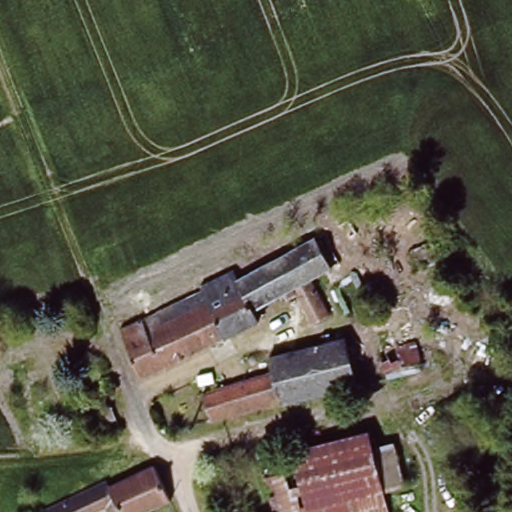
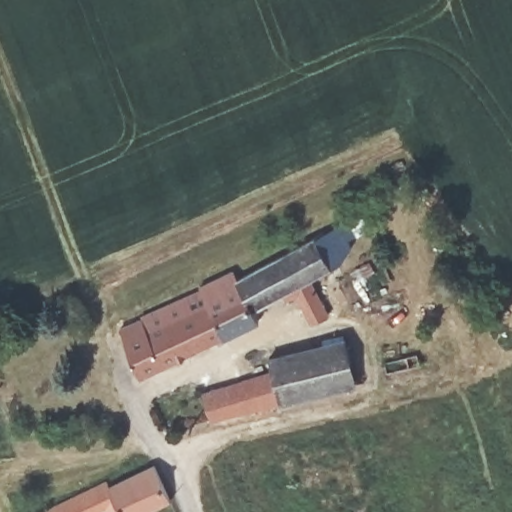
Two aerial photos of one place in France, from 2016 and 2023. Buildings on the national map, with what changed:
unchanged [(201,286),(234,272),(238,280),(317,237),(334,267),(312,280),(331,313),(314,322),(300,294),(289,300),(286,293),(256,311),(261,320),(142,379),(121,328),(203,292),(201,286)]
unchanged [(281,403),(274,372),(271,358),(326,344),(324,335),(331,334),(333,342),(345,339),(358,383),(281,403)]
unchanged [(381,356),(415,347),(421,366),(388,375),(381,356)]
unchanged [(281,403),(211,422),(203,395),(274,372),(281,403)]
demolished [(266,479),(296,477),(291,452),(371,432),(374,449),(398,445),(408,490),(381,493),(386,512),(268,512),(266,479)]
unchanged [(105,510),(100,512),(46,512),(45,510),(108,481),(110,485),(156,465),(171,501),(150,511),(151,512),(106,512),(105,510)]

